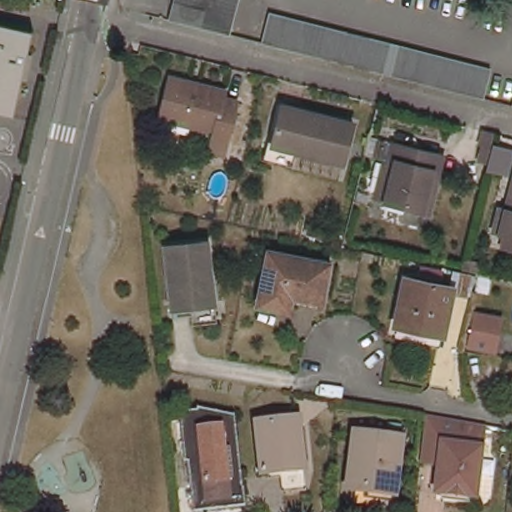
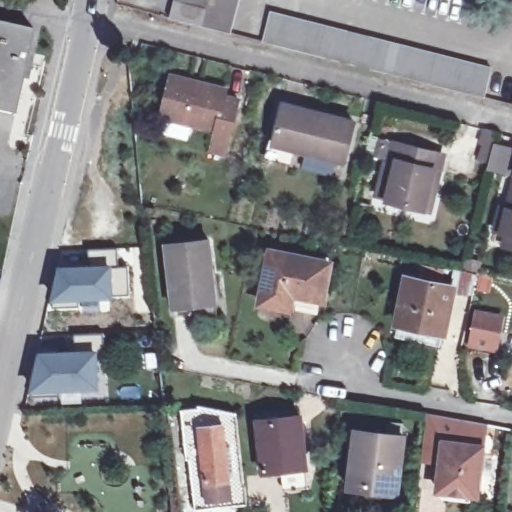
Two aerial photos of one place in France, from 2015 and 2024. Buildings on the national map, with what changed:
unchanged [(388,76),(273,47),(267,46),(274,17),(493,70),(487,100),(388,76)]
unchanged [(17,118),(0,114),(0,23),(37,32),(17,118)]
unchanged [(227,97),(225,102),(240,107),(230,145),(226,165),(210,161),(215,137),(160,122),(171,82),(227,97)]
unchanged [(358,125),(348,164),(273,145),(282,106),(358,125)]
unchanged [(490,162),(480,160),(485,146),(480,145),(485,130),(498,132),(490,162)]
unchanged [(418,210),(383,201),(393,161),(386,159),(390,144),(437,156),(435,171),(425,211),(418,210)]
unchanged [(503,234),(512,199),(512,236),(503,234)]
unchanged [(208,240),(217,302),(175,308),(167,246),(208,240)]
new [(57,264),(88,262),(87,248),(117,247),(117,265),(127,265),(128,295),(110,297),(109,299),(102,300),(103,311),(81,311),(80,302),(50,302),(57,264)]
unchanged [(328,265),(320,301),(290,295),(287,310),(260,304),(270,252),(328,265)]
unchanged [(455,291),(445,333),(400,324),(409,281),(455,291)]
new [(473,310),(505,315),(497,353),(467,348),(473,310)]
new [(75,351),(75,337),(97,336),(98,351),(100,390),(30,392),(40,352),(75,351)]
unchanged [(197,406),(235,413),(246,505),(194,510),(188,442),(185,443),(182,413),(197,406)]
unchanged [(306,417),(310,469),(267,472),(262,421),(306,417)]
unchanged [(462,449),(446,447),(442,468),(423,465),(429,418),(465,425),(462,449)]
unchanged [(487,429),(478,500),(438,494),(442,468),(446,447),(462,449),(465,425),(487,429)]
unchanged [(404,437),(395,493),(348,485),(357,429),(404,437)]

